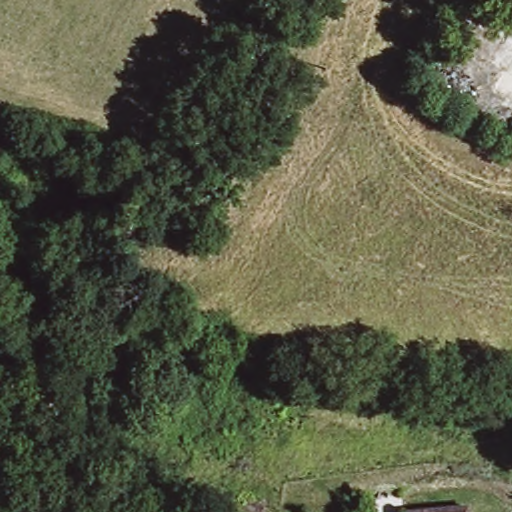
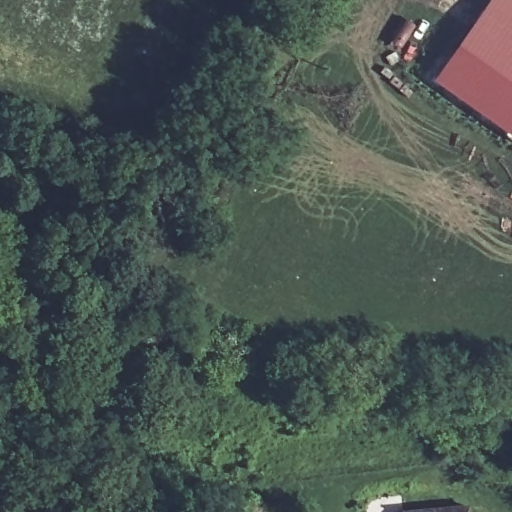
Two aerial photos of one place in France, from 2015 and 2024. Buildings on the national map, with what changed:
new [(512,136),(432,81),(489,0),(512,0),(512,136)]
unchanged [(0,179),(0,155),(12,157),(8,180),(0,179)]
unchanged [(42,202),(51,171),(75,181),(66,209),(42,202)]
unchanged [(469,502),(470,512),(404,512),(404,510),(469,502)]

